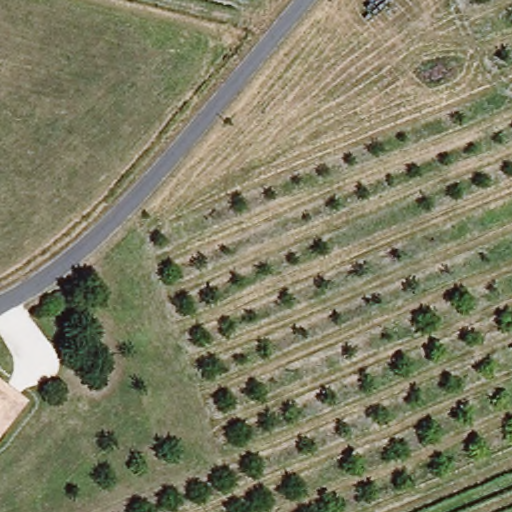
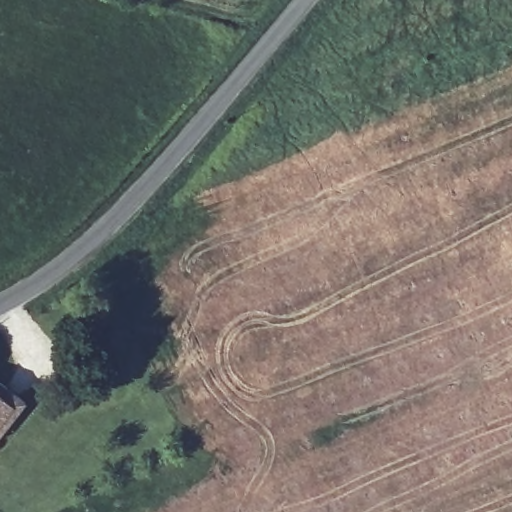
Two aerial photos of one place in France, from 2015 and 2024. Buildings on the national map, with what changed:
unchanged [(23,401),(0,433),(0,384),(23,401)]

